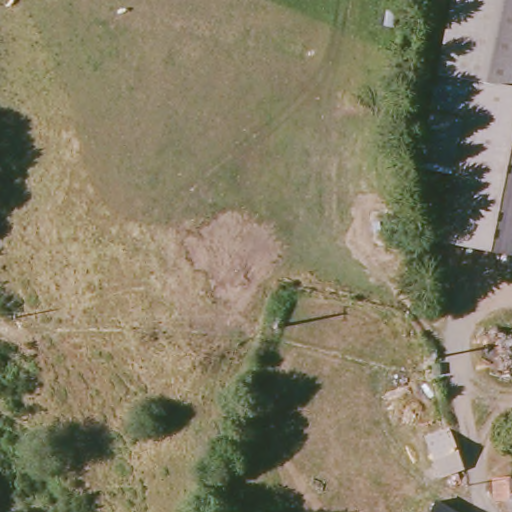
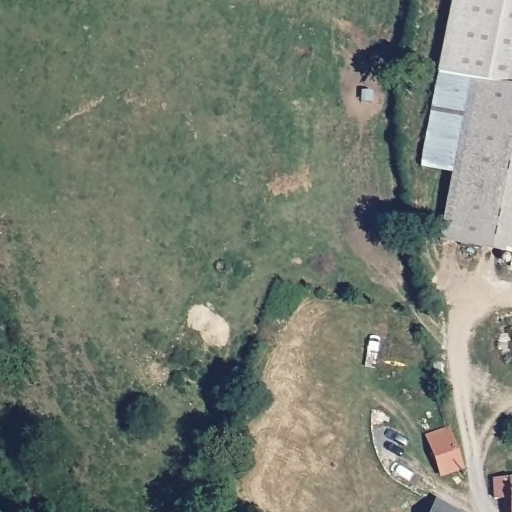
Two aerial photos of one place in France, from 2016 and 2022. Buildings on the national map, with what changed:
unchanged [(512,0),(512,90),(470,82),(438,76),(437,76),(452,0),(512,0)]
unchanged [(420,168),(438,76),(470,82),(452,175),(420,168)]
unchanged [(452,175),(470,82),(512,90),(512,255),(440,242),(452,175)]
unchanged [(461,468),(440,477),(426,437),(447,432),(461,468)]
unchanged [(505,498),(488,500),(488,480),(505,480),(505,482),(512,482),(512,512),(506,512),(505,498)]
unchanged [(436,502),(453,512),(431,512),(436,502)]

